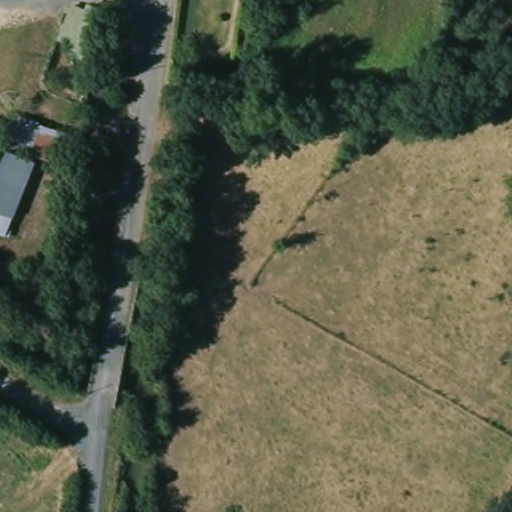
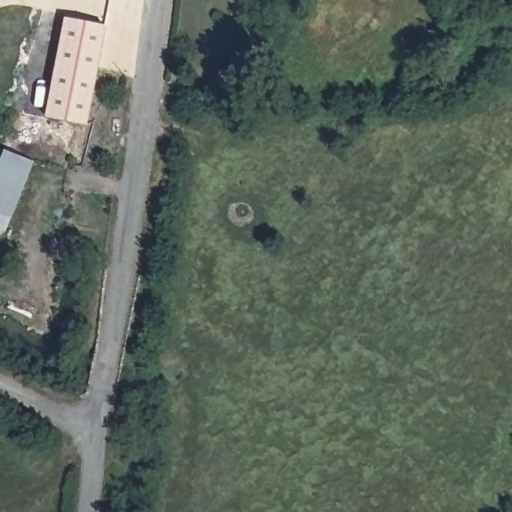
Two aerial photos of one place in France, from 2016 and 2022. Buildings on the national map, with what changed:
new [(89,127),(47,118),(66,18),(108,26),(89,127)]
unchanged [(0,225),(0,156),(35,167),(12,231),(0,225)]

